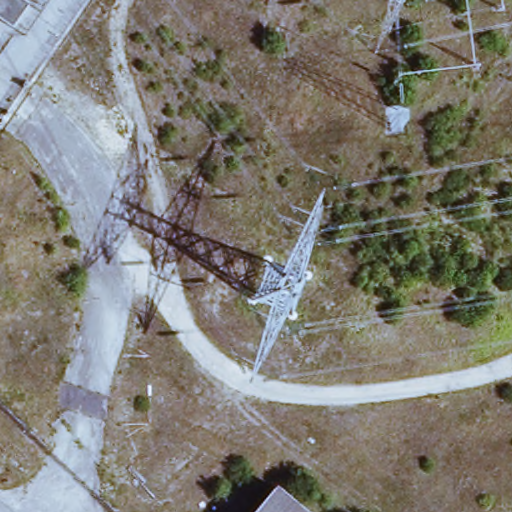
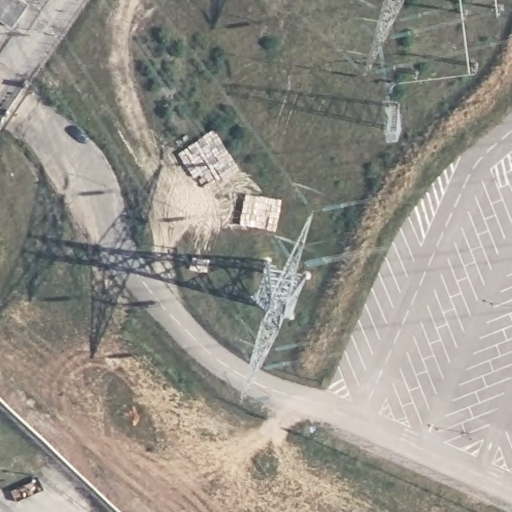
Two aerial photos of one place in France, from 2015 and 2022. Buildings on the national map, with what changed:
unchanged [(14,23),(0,15),(0,0),(25,0),(27,1),(14,23)]
demolished [(308,512),(252,512),(276,485),(308,512)]

